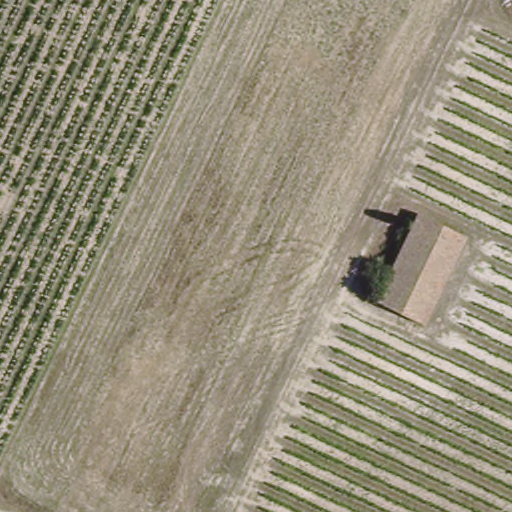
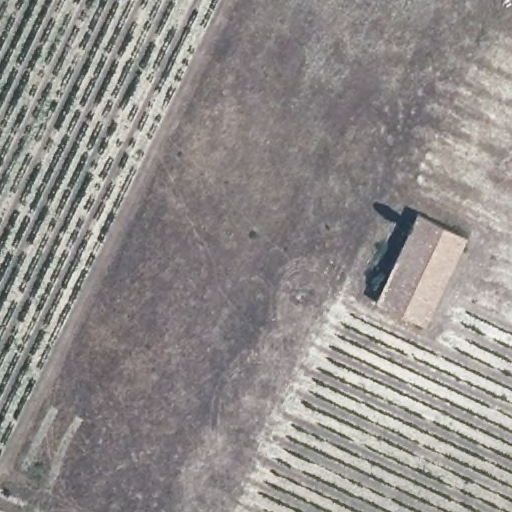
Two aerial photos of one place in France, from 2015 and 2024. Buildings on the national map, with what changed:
unchanged [(370,306),(382,277),(400,237),(412,211),(457,233),(415,325),(370,306)]

